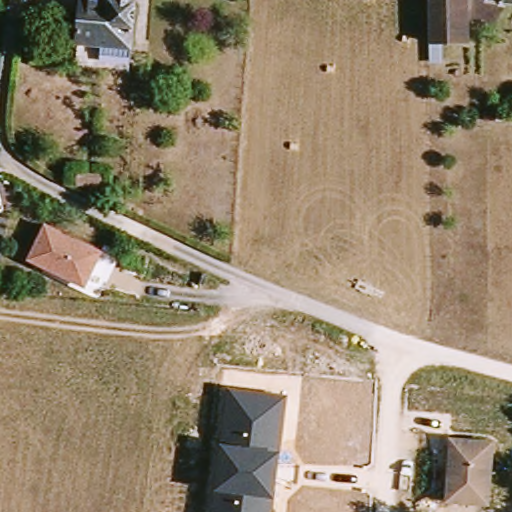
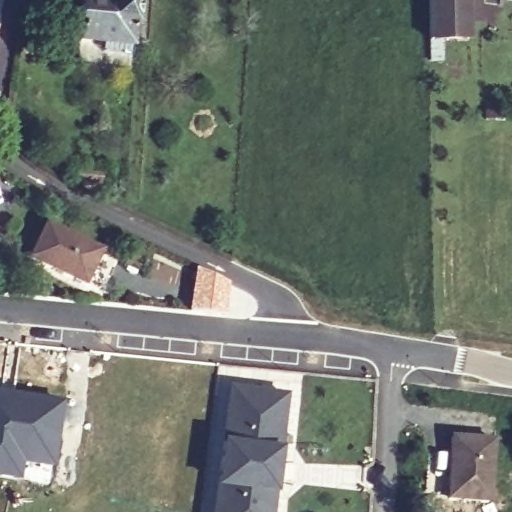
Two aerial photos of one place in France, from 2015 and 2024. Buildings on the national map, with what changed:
unchanged [(112,0),(135,2),(131,45),(130,61),(80,55),(81,40),(84,0),(112,0)]
unchanged [(437,39),(437,62),(430,61),(429,0),(466,0),(467,38),(437,39)]
unchanged [(499,1),(499,0),(512,0),(512,2),(499,1)]
unchanged [(104,250),(85,288),(26,260),(45,222),(104,250)]
demolished [(137,274),(135,293),(127,292),(129,273),(137,274)]
unchanged [(273,512),(212,512),(227,387),(288,395),(273,512)]
new [(50,467),(20,462),(18,480),(0,477),(0,394),(60,403),(50,467)]
unchanged [(489,437),(489,499),(447,499),(447,436),(489,437)]

